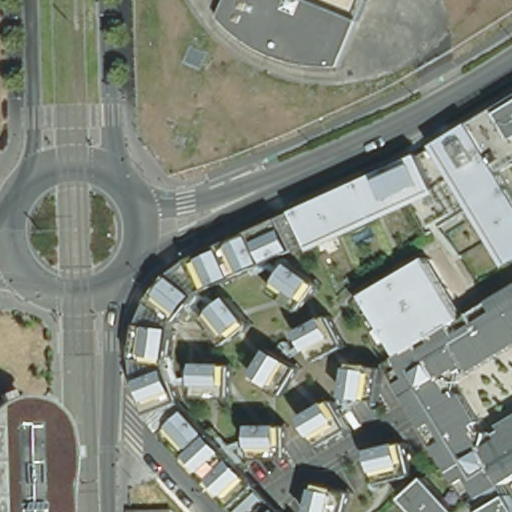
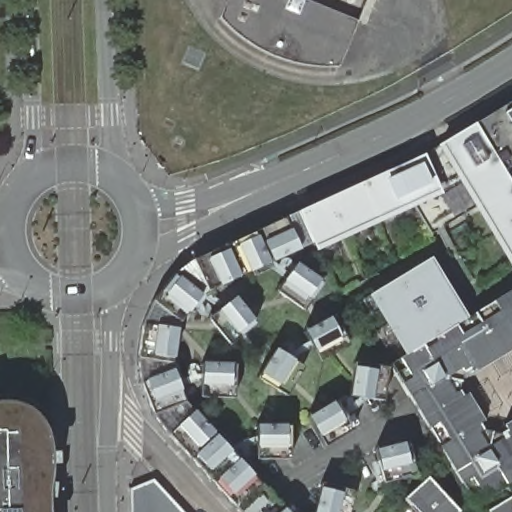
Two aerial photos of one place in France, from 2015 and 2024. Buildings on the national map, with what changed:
unchanged [(338,66),(334,67),(325,67),(315,67),(306,66),(297,64),(290,62),(281,59),(275,57),(269,54),(259,50),(253,46),(247,42),(240,37),(236,33),(230,28),(226,24),(222,20),(219,16),(226,0),(305,0),(356,21),(338,66)]
unchanged [(501,171),(512,190),(512,259),(479,204),(429,234),(421,220),(415,211),(409,200),(403,190),(391,172),(416,157),(512,100),(512,165),(501,171)]
unchanged [(152,414),(151,411),(139,383),(139,379),(137,358),(140,337),(141,324),(142,322),(151,301),(172,275),(190,261),(192,260),(296,212),(390,169),(391,172),(403,190),(409,200),(311,245),(310,244),(207,291),(193,302),(178,323),(177,328),(173,338),(171,354),(171,370),(183,402),(260,484),(235,508),(177,446),(165,433),(152,414)]
unchanged [(482,498),(473,503),(468,495),(452,468),(438,444),(423,420),(402,386),(390,365),(409,353),(373,293),(381,289),(430,259),(466,318),(512,291),(512,480),(482,498)]
unchanged [(294,265),(321,284),(317,291),(302,311),(285,299),(275,292),(294,265)]
unchanged [(231,298),(242,310),(253,323),(228,345),(206,320),(231,298)]
unchanged [(333,317),(349,346),(319,362),(303,333),(333,317)]
unchanged [(301,366),(284,395),(255,377),(273,349),(301,366)]
unchanged [(233,364),(232,397),(199,396),(200,363),(233,364)]
unchanged [(387,368),(383,401),(350,398),(354,364),(387,368)]
unchanged [(336,400),(352,429),(323,445),(307,416),(336,400)]
unchanged [(16,408),(26,409),(33,412),(41,416),(50,422),(56,429),(60,441),(62,512),(0,512),(0,412),(6,409),(16,408)]
unchanged [(289,425),(289,458),(256,458),(256,425),(289,425)]
unchanged [(391,441),(402,438),(408,463),(410,471),(397,474),(377,478),(372,458),(370,446),(391,441)]
unchanged [(427,478),(434,485),(455,508),(458,512),(417,512),(411,506),(404,499),(427,478)]
new [(129,490),(154,481),(183,512),(172,512),(171,509),(130,511),(129,490)]
unchanged [(348,490),(352,491),(348,512),(313,512),(320,483),(348,490)]
unchanged [(235,508),(260,484),(282,509),(279,512),(239,512),(235,508)]
unchanged [(488,510),(504,500),(511,496),(512,497),(512,512),(486,512),(487,511),(488,510)]
unchanged [(130,511),(171,509),(172,512),(131,512),(130,511)]
unchanged [(282,509),(285,512),(279,512),(282,509)]

